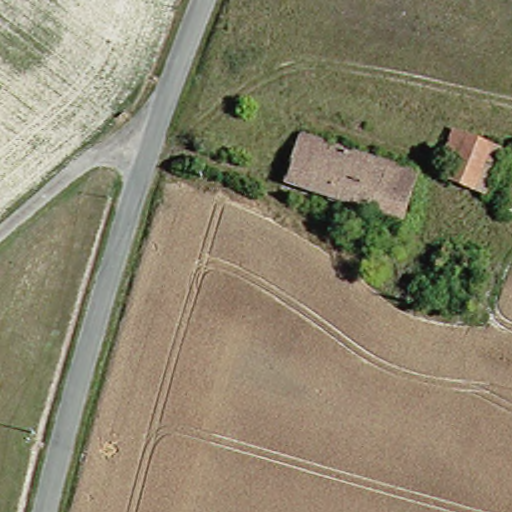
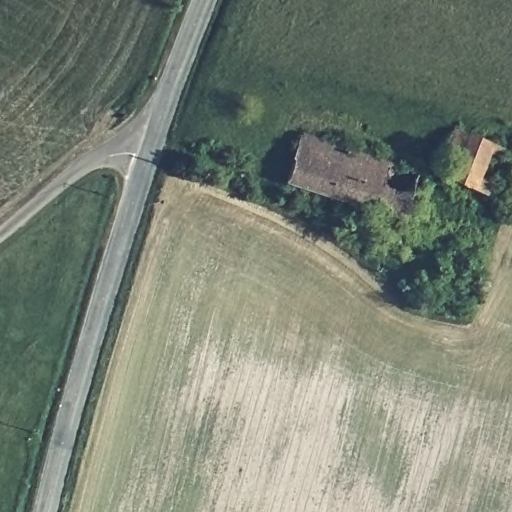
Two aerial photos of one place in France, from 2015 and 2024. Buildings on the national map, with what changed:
unchanged [(400,221),(283,187),(298,136),(416,175),(400,221)]
unchanged [(444,140),(492,156),(487,171),(479,196),(443,182),(448,170),(436,165),(438,157),(444,140)]
unchanged [(496,211),(512,155),(512,219),(496,211)]

